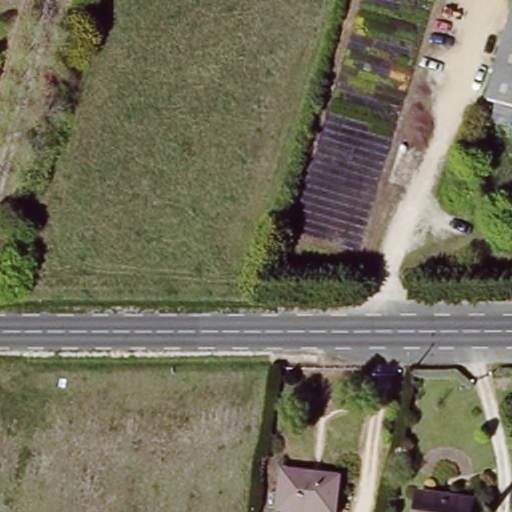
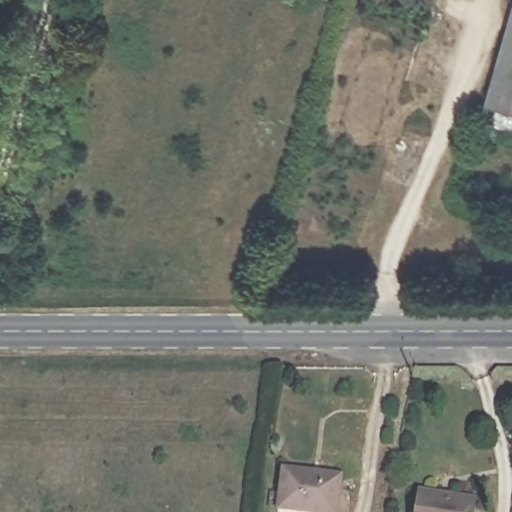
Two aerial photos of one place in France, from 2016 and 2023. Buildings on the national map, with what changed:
unchanged [(512,17),(512,105),(490,100),(512,17)]
unchanged [(339,512),(318,512),(284,507),(289,472),(314,476),(315,471),(345,476),(339,512)]
unchanged [(478,512),(423,512),(428,490),(480,502),(478,512)]

